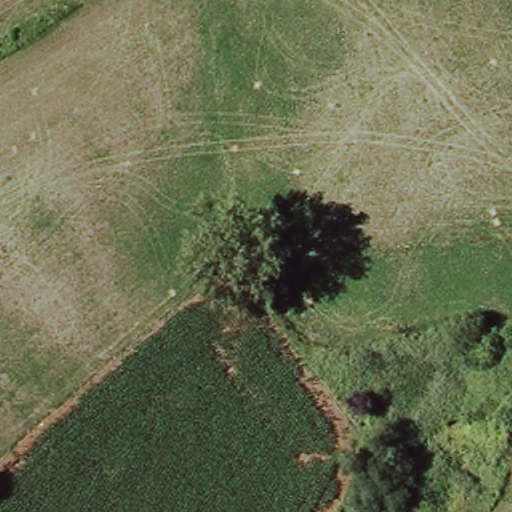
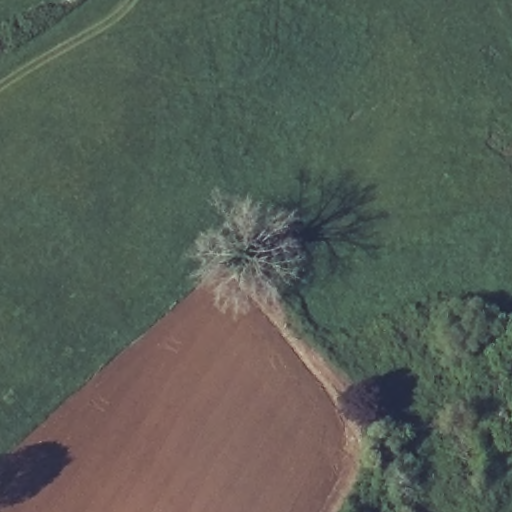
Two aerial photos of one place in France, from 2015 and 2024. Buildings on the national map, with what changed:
[]

